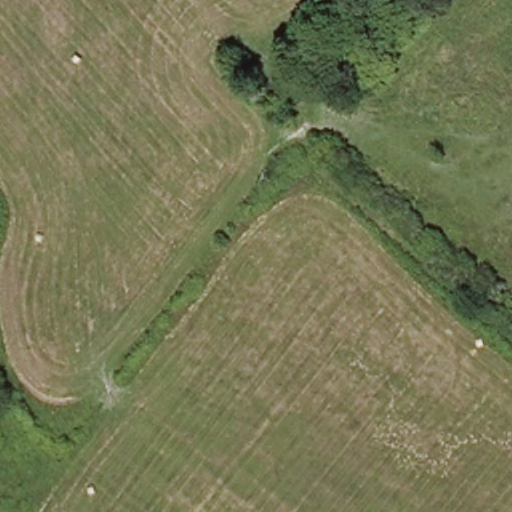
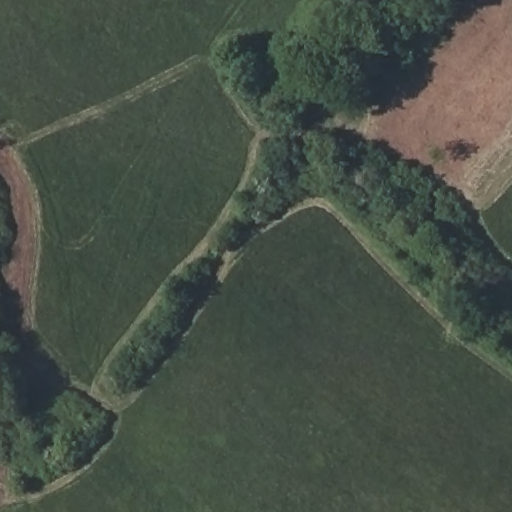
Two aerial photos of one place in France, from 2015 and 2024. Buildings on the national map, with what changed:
[]

